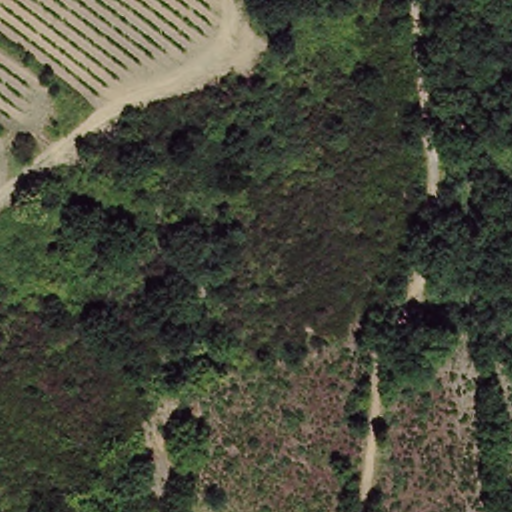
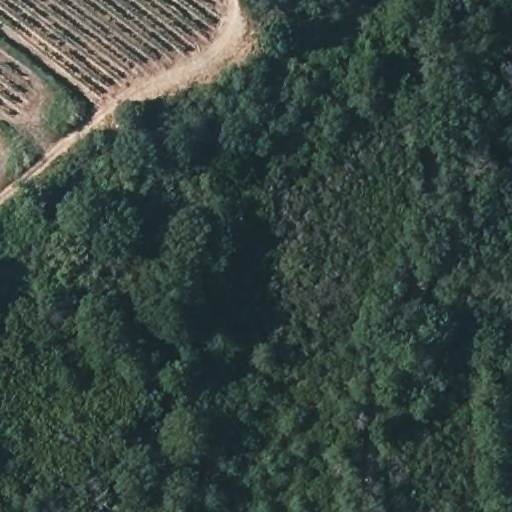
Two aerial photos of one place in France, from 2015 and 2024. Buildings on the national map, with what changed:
unchanged [(167,258),(162,272),(148,268),(155,254),(167,258)]

